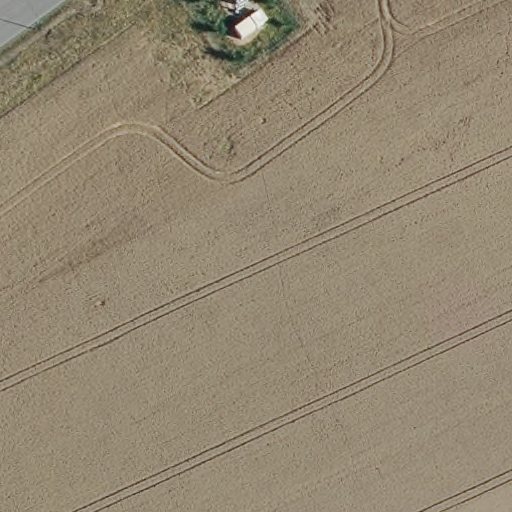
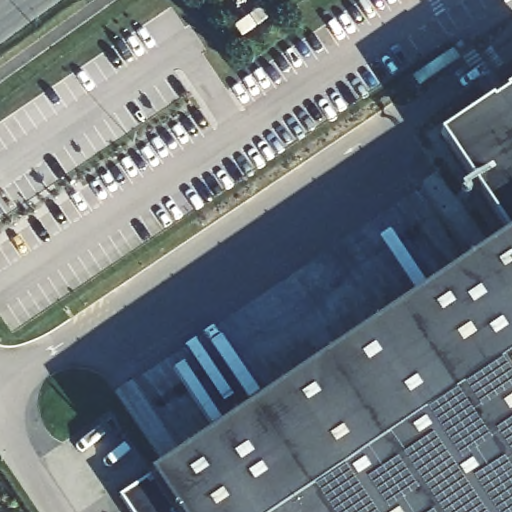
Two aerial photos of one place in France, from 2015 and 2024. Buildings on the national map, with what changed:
new [(418,88),(412,77),(452,50),(460,60),(418,88)]
new [(125,490),(505,238),(437,134),(512,90),(512,512),(141,512),(125,490)]

